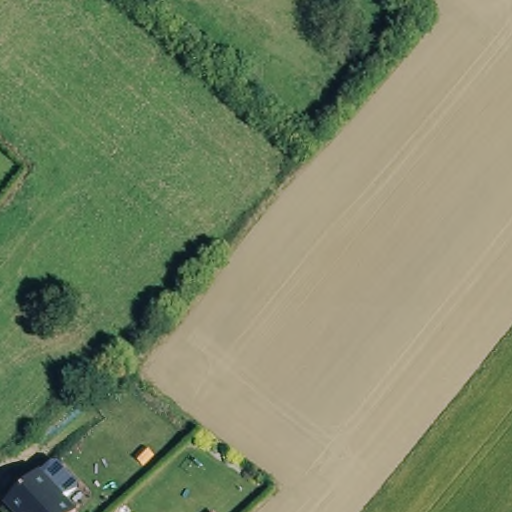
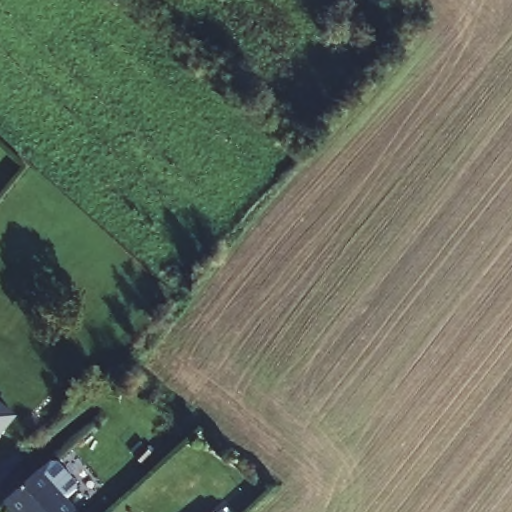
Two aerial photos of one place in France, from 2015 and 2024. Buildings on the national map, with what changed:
new [(18,416),(0,437),(0,401),(18,416)]
unchanged [(13,512),(3,502),(36,471),(74,511),(72,512),(13,512)]

